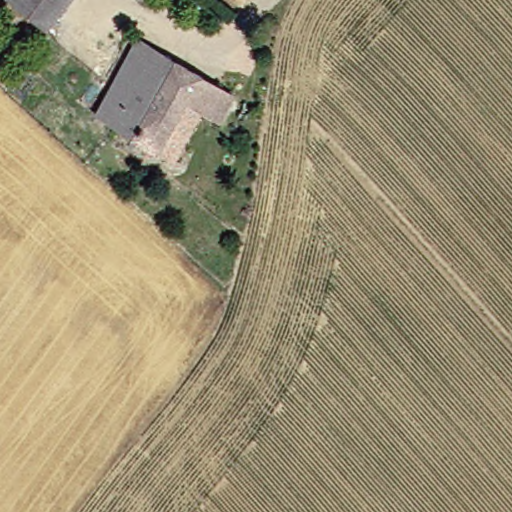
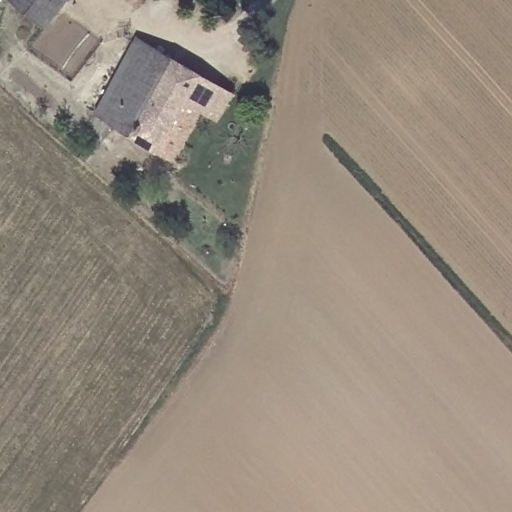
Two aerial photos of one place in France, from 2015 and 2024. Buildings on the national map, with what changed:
unchanged [(39,27),(8,0),(63,0),(39,27)]
unchanged [(184,161),(178,172),(161,161),(88,114),(120,67),(105,59),(121,32),(228,97),(213,125),(202,118),(178,157),(184,161)]

